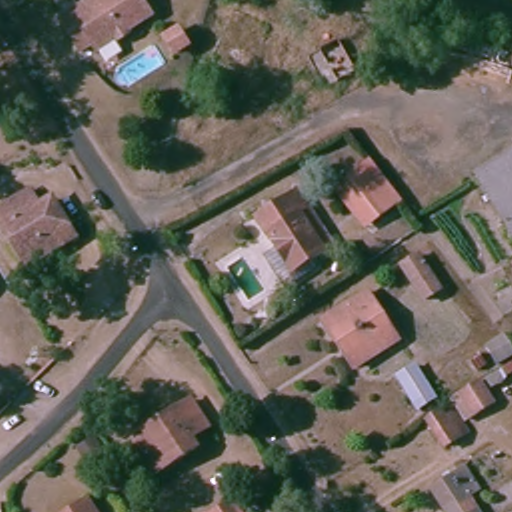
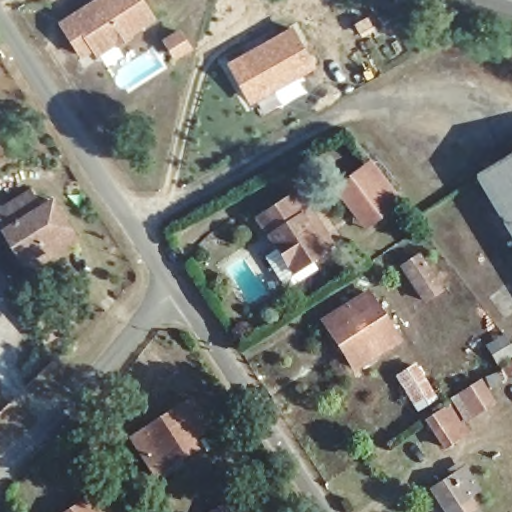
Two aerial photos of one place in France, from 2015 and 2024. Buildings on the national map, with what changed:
unchanged [(123,43),(121,40),(101,53),(97,47),(85,55),(63,23),(83,9),(96,0),(146,0),(156,15),(135,30),(137,34),(123,43)]
new [(315,67),(266,95),(241,54),(293,24),(315,67)]
unchanged [(169,37),(181,28),(192,42),(179,51),(169,37)]
unchanged [(512,154),(512,227),(478,174),(512,154)]
unchanged [(331,197),(373,162),(406,202),(366,236),(331,197)]
unchanged [(287,290),(266,258),(280,249),(256,216),(287,197),(299,214),(309,206),(332,239),(307,256),(316,267),(287,290)]
unchanged [(82,241),(35,270),(2,220),(16,211),(32,201),(42,214),(57,205),(82,241)]
unchanged [(415,293),(391,263),(423,239),(448,271),(415,293)]
unchanged [(397,337),(356,366),(326,322),(366,295),(397,337)]
unchanged [(392,369),(405,360),(430,393),(417,405),(392,369)]
unchanged [(470,379),(480,372),(492,391),(464,412),(452,397),(461,388),(459,386),(470,379)]
unchanged [(129,440),(188,401),(206,426),(188,438),(194,447),(179,458),(177,455),(152,471),(129,440)]
unchanged [(446,404),(462,427),(457,432),(458,433),(443,442),(426,417),(440,407),(446,404)]
unchanged [(97,429),(106,442),(90,453),(81,441),(97,429)]
unchanged [(458,471),(462,468),(464,471),(479,491),(468,499),(477,512),(441,512),(427,492),(458,471)]
unchanged [(241,512),(218,512),(233,502),(241,512)]
unchanged [(81,512),(70,512),(77,507),(81,512)]

